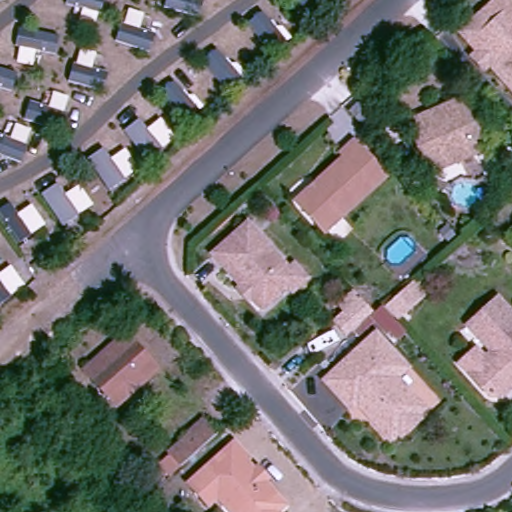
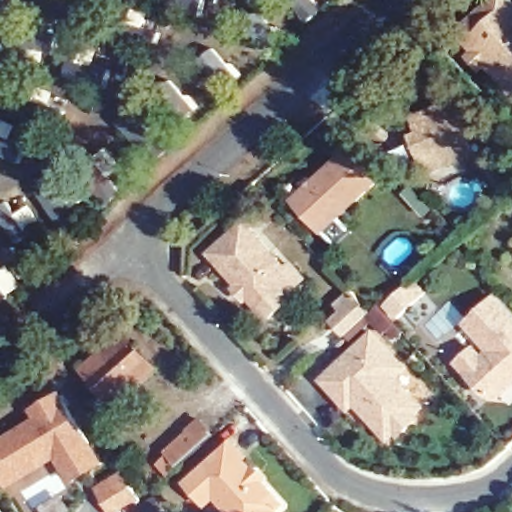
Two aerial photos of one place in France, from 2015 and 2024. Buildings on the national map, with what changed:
unchanged [(509,0),(512,4),(512,26),(491,3),(495,0),(509,0)]
unchanged [(470,57),(475,52),(457,33),(491,3),(512,26),(512,94),(486,65),(481,70),(470,57)]
unchanged [(453,162),(437,169),(431,155),(415,119),(423,116),(470,96),(476,112),(491,145),(453,162)]
unchanged [(336,154),(333,150),(346,139),(376,174),(313,227),(287,196),(336,154)]
unchanged [(310,277),(298,288),(291,281),(265,305),(254,293),(254,288),(249,282),(246,284),(217,251),(250,221),(292,268),(298,263),(310,277)]
unchanged [(504,386),(491,385),(471,362),(487,348),(495,348),(496,342),(471,315),(500,289),(512,302),(512,379),(504,386)]
unchanged [(386,350),(378,341),(375,344),(363,331),(341,350),(328,336),(339,327),(332,319),(347,306),(354,313),(366,327),(375,320),(397,300),(409,314),(386,334),(395,343),(386,350)]
unchanged [(83,372),(124,335),(152,367),(140,378),(135,374),(107,399),(83,372)]
unchanged [(368,349),(399,383),(388,393),(415,424),(407,431),(408,440),(398,449),(389,447),(381,454),(361,433),(362,425),(352,415),(342,424),(317,395),(368,349)]
new [(57,460),(10,489),(0,474),(0,453),(0,439),(35,417),(30,410),(62,390),(105,463),(72,484),(57,460)]
unchanged [(208,432),(159,471),(150,459),(158,447),(194,413),(208,432)]
unchanged [(218,500),(209,508),(190,487),(235,447),(247,461),(245,463),(255,474),(258,471),(266,480),(262,483),(283,507),(279,512),(228,512),(218,500)]
new [(141,500),(124,512),(111,512),(95,487),(123,470),(141,500)]

